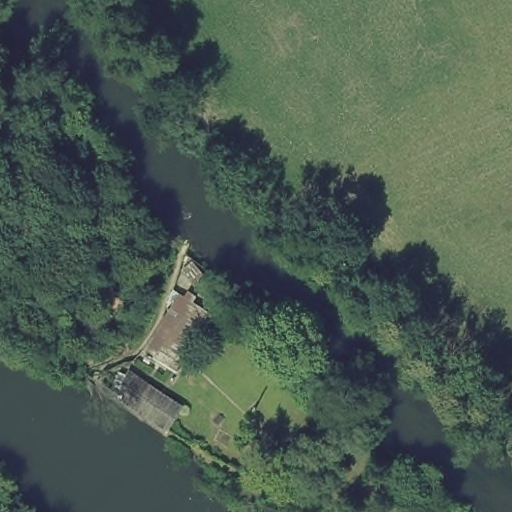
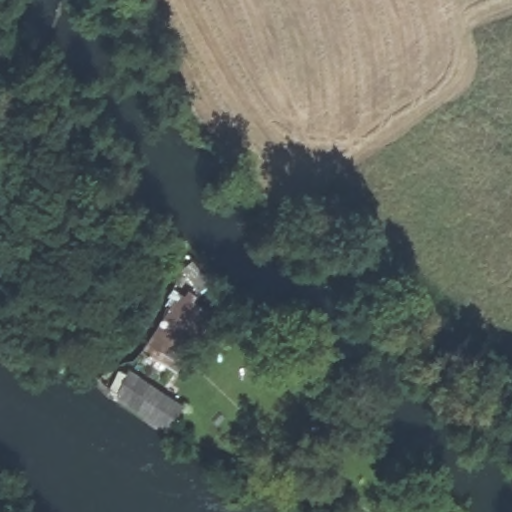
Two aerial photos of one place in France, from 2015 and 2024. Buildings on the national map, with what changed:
unchanged [(176,367),(148,347),(182,291),(212,311),(176,367)]
unchanged [(173,435),(114,395),(130,372),(184,407),(173,435)]

